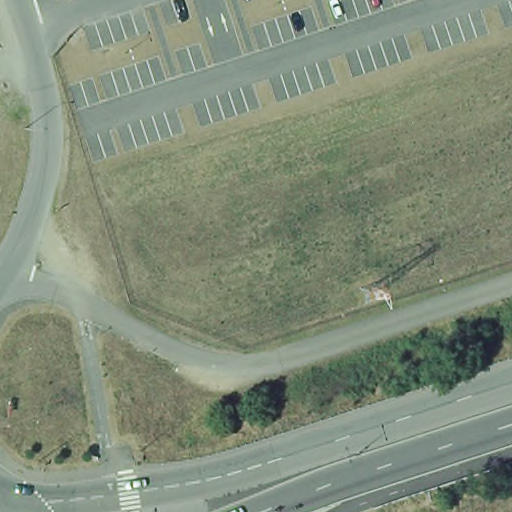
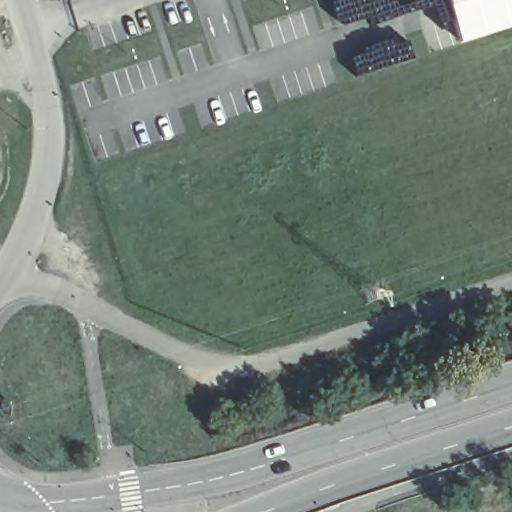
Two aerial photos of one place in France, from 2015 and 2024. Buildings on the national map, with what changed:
new [(448,0),(512,0),(512,28),(462,45),(448,0)]

